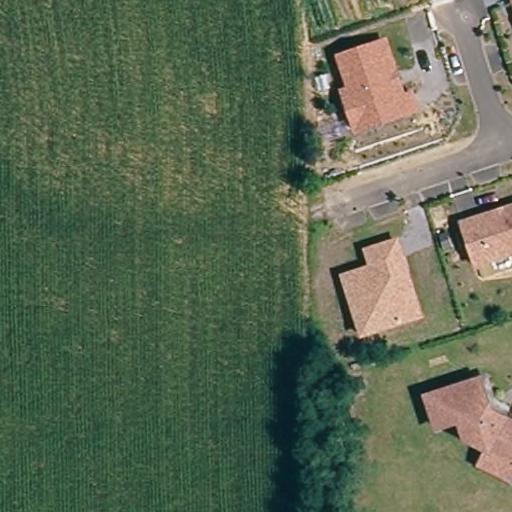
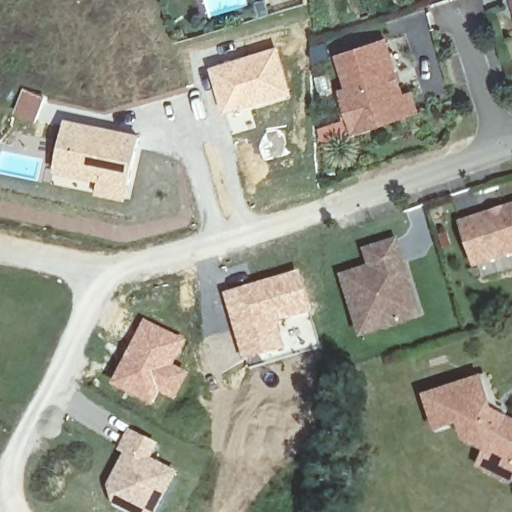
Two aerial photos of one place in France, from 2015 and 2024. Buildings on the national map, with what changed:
unchanged [(351,112),(345,92),(347,88),(351,86),(341,54),(387,40),(404,96),(412,93),(417,110),(368,125),(356,129),(351,112)]
new [(278,45),(292,95),(222,113),(208,66),(278,45)]
new [(23,88),(45,96),(35,123),(12,115),(23,88)]
new [(64,118),(140,134),(125,200),(95,193),(97,182),(54,173),(64,118)]
unchanged [(512,257),(477,269),(465,227),(512,212),(512,257)]
unchanged [(403,319),(362,332),(343,272),(372,263),(367,247),(397,237),(404,259),(421,313),(403,319)]
new [(301,270),(312,313),(280,322),(287,349),(244,362),(223,293),(301,270)]
new [(144,319),(187,340),(175,365),(191,373),(177,402),(161,394),(154,407),(111,385),(144,319)]
unchanged [(462,443),(458,432),(456,422),(432,429),(424,398),(473,384),(485,381),(492,409),(502,413),(498,422),(512,427),(512,478),(510,483),(475,469),(482,450),(462,443)]
new [(124,453),(117,450),(129,429),(160,444),(152,458),(177,471),(164,496),(158,493),(148,512),(147,512),(106,491),(124,453)]

